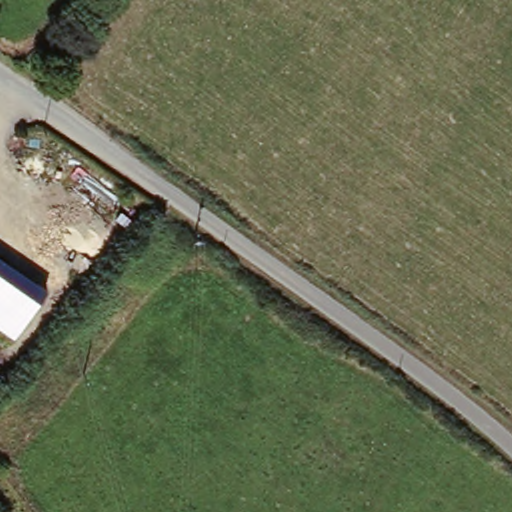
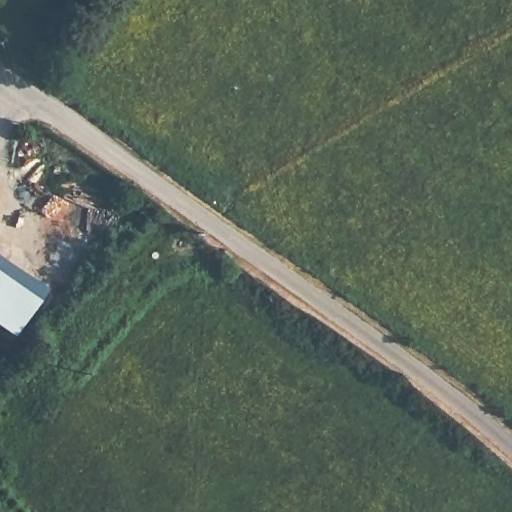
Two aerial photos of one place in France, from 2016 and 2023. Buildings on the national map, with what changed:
unchanged [(13,337),(0,328),(0,254),(46,287),(13,337)]

